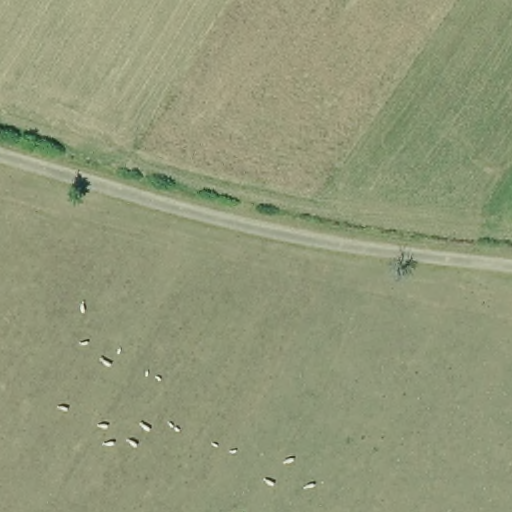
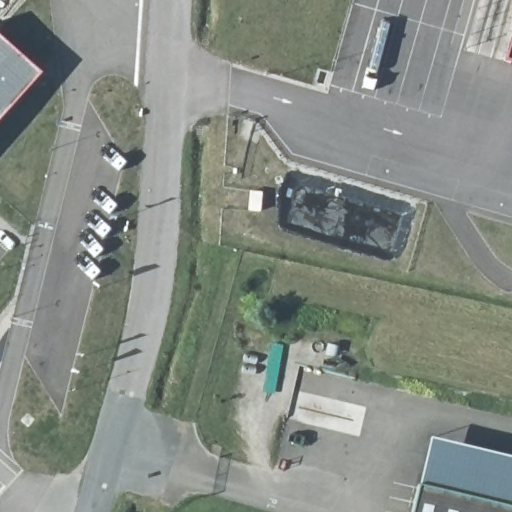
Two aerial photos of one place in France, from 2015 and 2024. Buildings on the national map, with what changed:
new [(278,34),(246,34),(248,8),(278,10),(278,34)]
new [(42,74),(0,120),(0,36),(42,74)]
new [(512,40),(512,64),(506,62),(512,40)]
new [(443,491),(446,481),(429,477),(426,487),(419,485),(430,438),(512,458),(512,508),(443,491)]
unchanged [(419,485),(426,487),(429,477),(446,481),(443,491),(512,508),(512,512),(411,512),(418,485),(419,485)]

